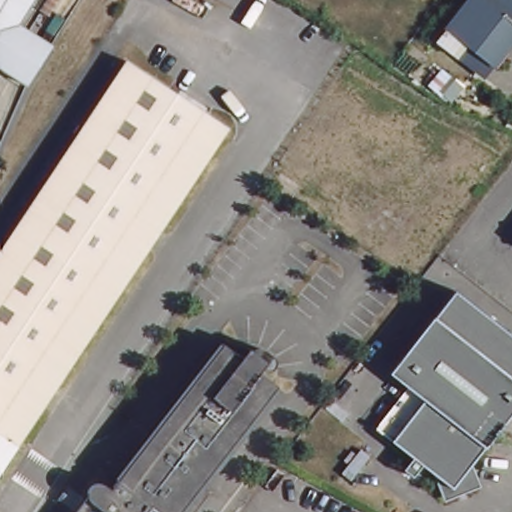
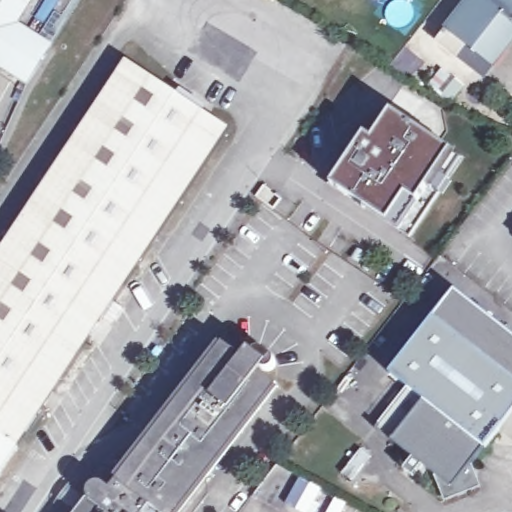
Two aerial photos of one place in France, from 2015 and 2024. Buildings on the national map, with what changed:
unchanged [(23,23),(55,44),(28,91),(0,75),(0,0),(39,0),(23,23)]
unchanged [(451,32),(476,0),(482,4),(486,0),(512,0),(512,17),(509,15),(500,26),(502,45),(510,51),(498,67),(471,47),(461,59),(441,44),(451,32)]
unchanged [(125,60),(228,128),(0,469),(0,249),(125,60)]
new [(366,136),(374,142),(393,110),(448,148),(460,155),(435,196),(430,193),(408,225),(401,220),(392,234),(360,215),(365,208),(333,187),(366,136)]
unchanged [(439,478),(375,429),(408,388),(387,371),(413,338),(430,316),(452,289),(487,315),(512,335),(512,407),(467,466),(473,484),(445,495),(439,478)]
unchanged [(85,485),(90,481),(95,479),(100,480),(107,485),(220,340),(238,353),(247,344),(250,347),(253,345),(260,345),(272,354),(273,359),(272,364),(267,367),(262,367),(257,364),(255,366),(273,380),(232,434),(225,445),(193,486),(198,489),(195,494),(200,497),(190,509),(189,512),(78,512),(85,492),(85,490),(85,485)]

